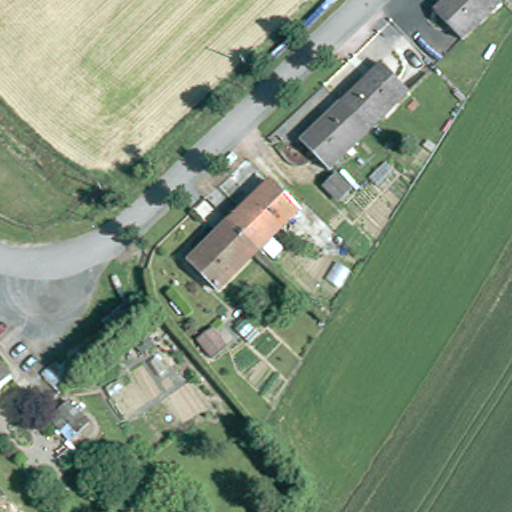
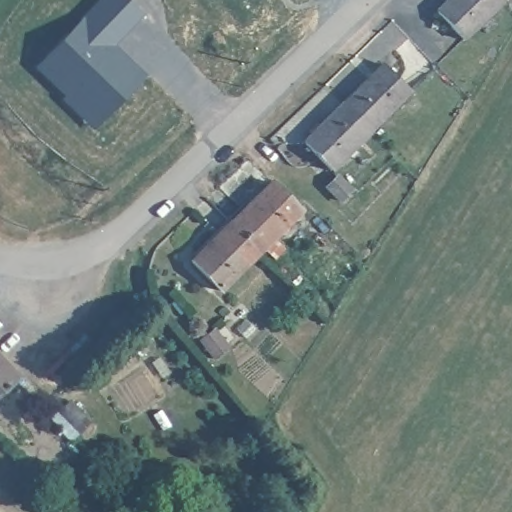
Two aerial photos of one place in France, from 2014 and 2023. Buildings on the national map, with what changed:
new [(128,0),(143,14),(114,46),(146,75),(93,130),(60,99),(62,96),(33,67),(98,0),(128,0)]
unchanged [(450,12),(463,0),(502,0),(466,31),(450,12)]
unchanged [(368,79),(373,83),(388,68),(406,90),(367,126),(342,102),(368,79)]
unchanged [(326,117),(342,102),(367,126),(328,162),(311,144),(332,123),(326,117)]
unchanged [(334,169),(346,182),(336,191),(323,177),(334,169)]
unchanged [(243,216),(277,186),(288,199),(301,214),(270,242),(249,262),(222,287),(196,257),(243,216)]
unchanged [(21,380),(0,395),(0,351),(21,380)]
unchanged [(50,407),(67,392),(82,410),(65,425),(50,407)]

